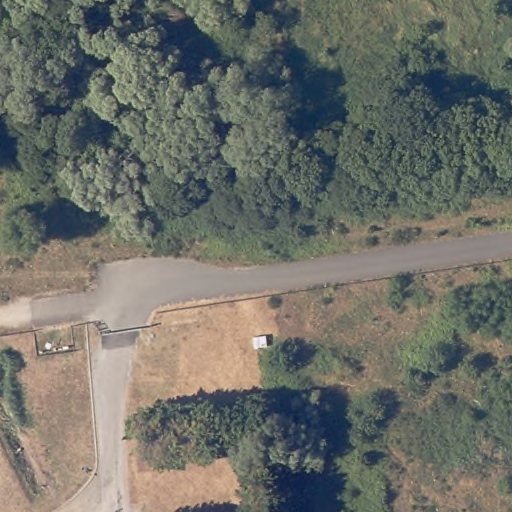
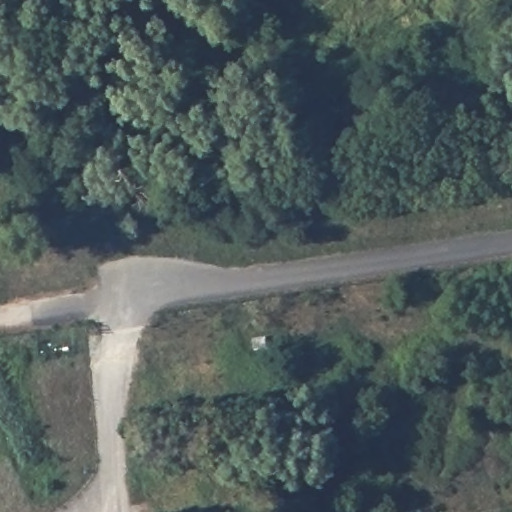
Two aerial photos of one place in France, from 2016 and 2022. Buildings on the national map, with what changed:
unchanged [(234,451),(236,483),(165,490),(162,457),(234,451)]

